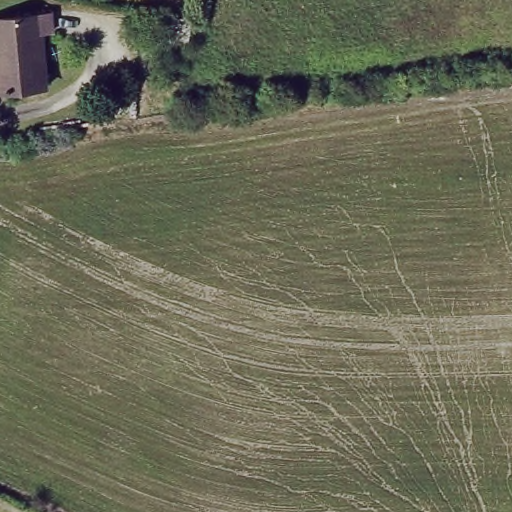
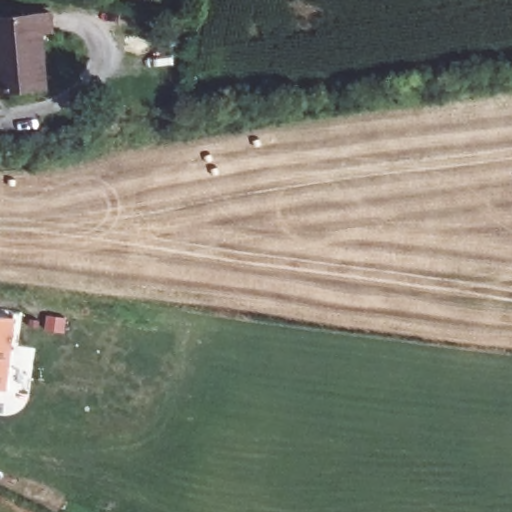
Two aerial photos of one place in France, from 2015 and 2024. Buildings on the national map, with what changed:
unchanged [(48,28),(32,30),(38,85),(0,89),(0,16),(45,9),(48,28)]
new [(7,389),(0,389),(0,317),(15,318),(7,389)]

